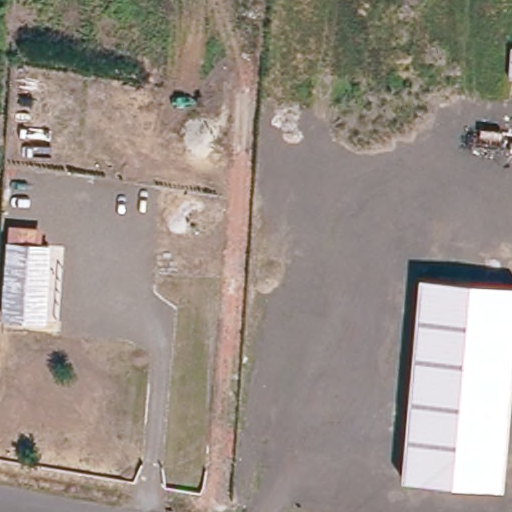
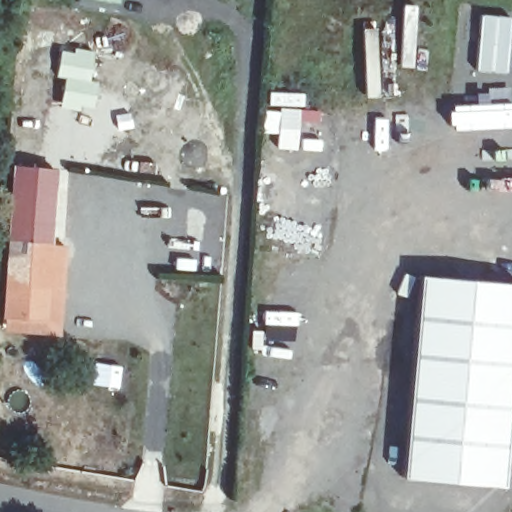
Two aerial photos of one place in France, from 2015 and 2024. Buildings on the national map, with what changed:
new [(506,73),(475,71),(480,15),(510,17),(506,73)]
new [(56,76),(61,48),(96,52),(90,81),(99,82),(95,109),(61,106),(65,77),(56,76)]
new [(12,165),(57,170),(51,243),(42,242),(43,227),(7,225),(12,165)]
unchanged [(7,241),(7,225),(43,227),(42,242),(51,243),(47,322),(1,317),(7,241)]
new [(68,247),(59,337),(4,331),(4,318),(47,322),(51,245),(68,247)]
unchanged [(418,275),(512,282),(512,385),(503,487),(400,477),(418,275)]

